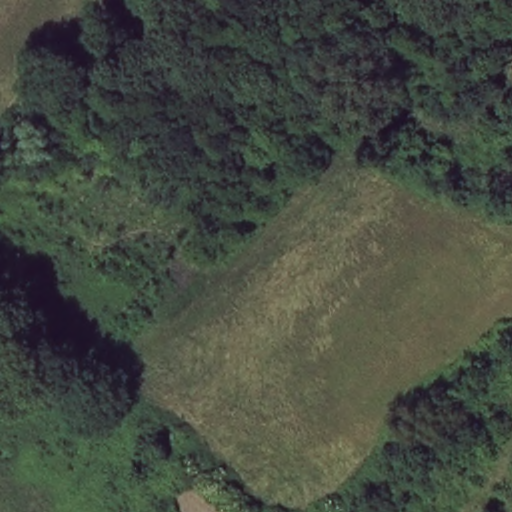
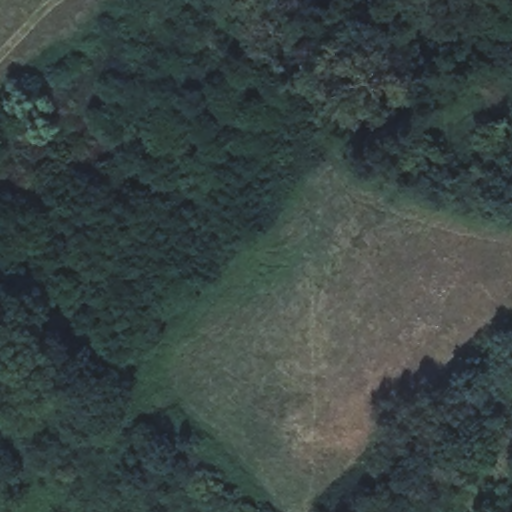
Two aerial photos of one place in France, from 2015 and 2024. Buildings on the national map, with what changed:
[]

